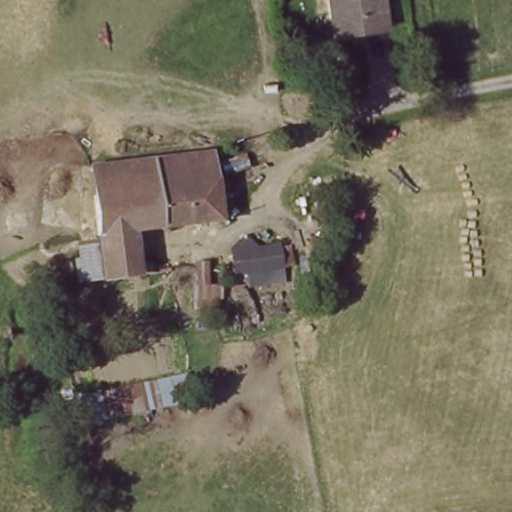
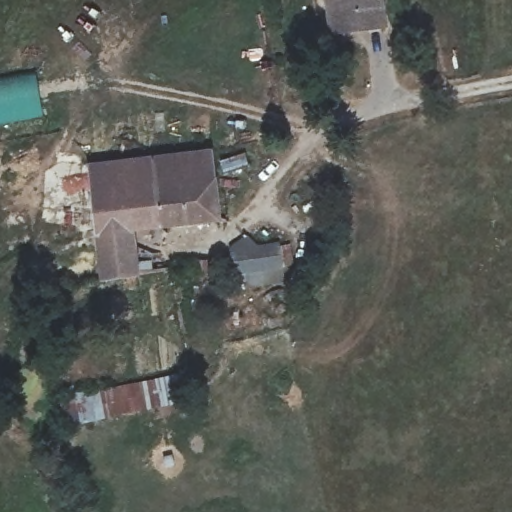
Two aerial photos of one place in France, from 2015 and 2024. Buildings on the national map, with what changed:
unchanged [(333,0),(384,0),(387,28),(336,34),(333,0)]
new [(36,71),(45,118),(0,125),(0,78),(36,71)]
unchanged [(97,277),(88,163),(168,155),(209,151),(215,210),(216,216),(135,225),(138,275),(97,277)]
unchanged [(222,277),(221,319),(197,315),(193,257),(223,250),(223,239),(285,239),(290,275),(222,277)]
unchanged [(80,422),(77,395),(187,372),(192,402),(80,422)]

